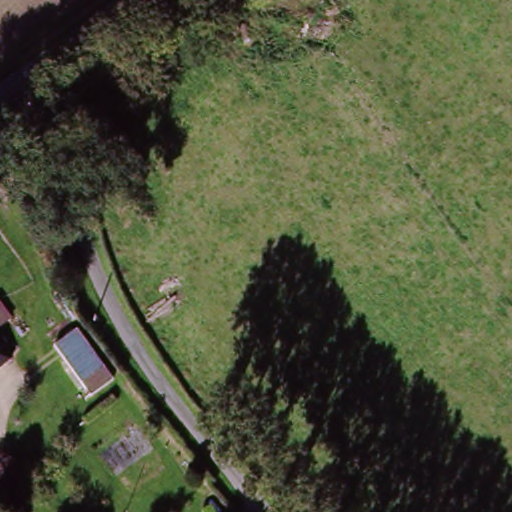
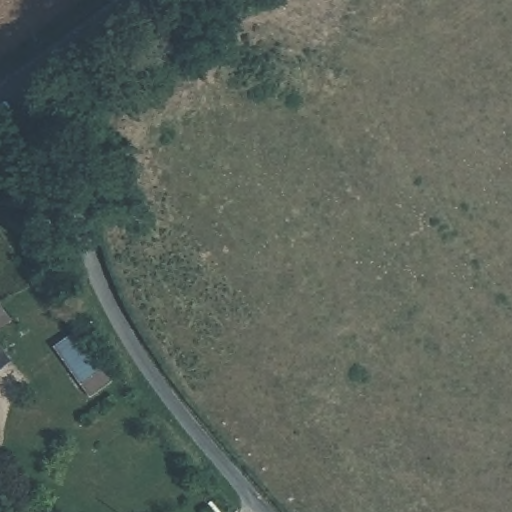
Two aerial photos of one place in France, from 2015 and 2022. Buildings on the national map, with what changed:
unchanged [(80,336),(108,370),(88,385),(59,352),(80,336)]
unchanged [(12,361),(0,371),(0,344),(3,348),(12,361)]

